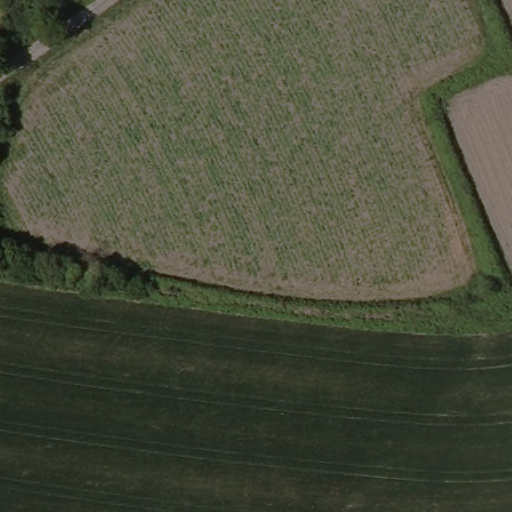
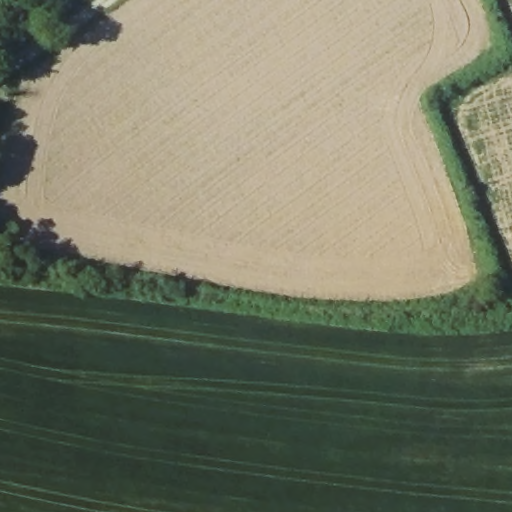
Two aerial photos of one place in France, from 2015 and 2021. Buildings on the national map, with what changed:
[]

